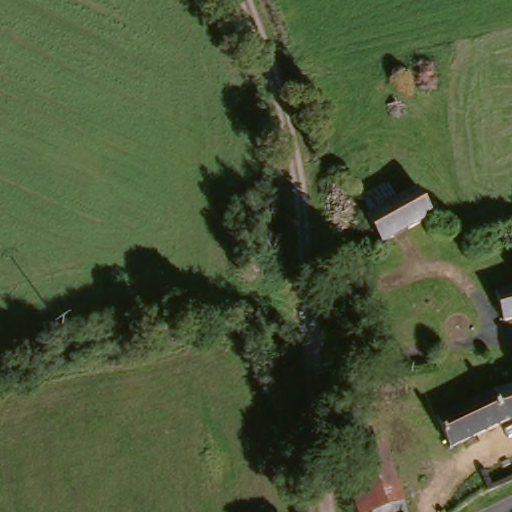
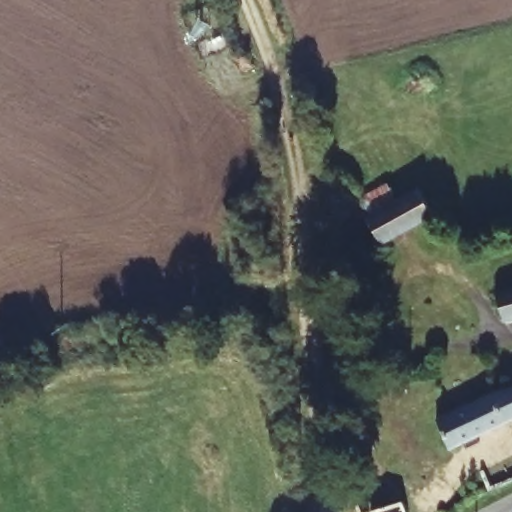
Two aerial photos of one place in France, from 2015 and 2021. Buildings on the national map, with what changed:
unchanged [(432,224),(381,250),(364,222),(367,221),(359,204),(384,192),(392,207),(416,194),(432,224)]
unchanged [(494,299),(512,294),(512,326),(505,328),(494,299)]
unchanged [(436,427),(441,425),(436,412),(473,395),(480,408),(512,395),(512,431),(449,458),(436,427)]
unchanged [(396,494),(351,510),(339,467),(350,464),(383,453),(396,494)]
unchanged [(471,490),(483,486),(481,481),(512,467),(512,492),(478,507),(471,490)]
unchanged [(397,497),(402,512),(352,512),(351,510),(396,494),(397,497)]

